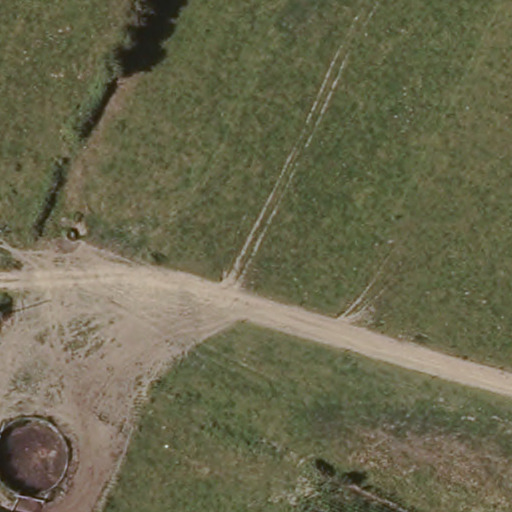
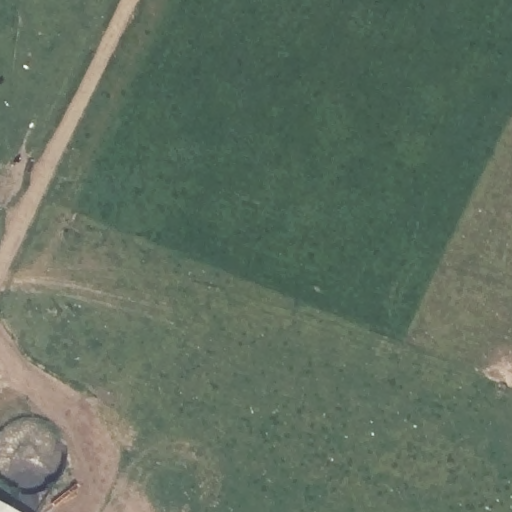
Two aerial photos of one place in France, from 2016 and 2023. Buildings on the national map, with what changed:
unchanged [(0,501),(24,512),(0,512),(0,501)]

